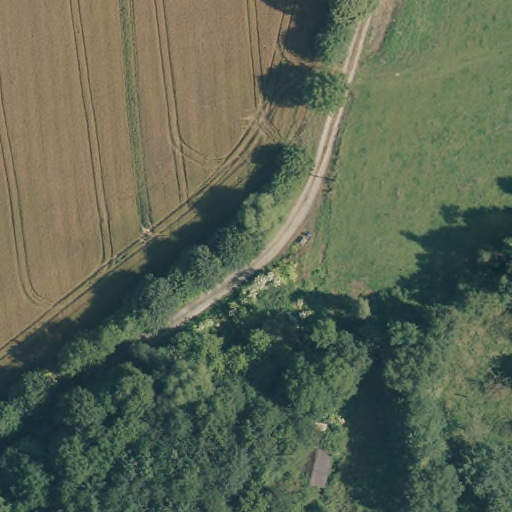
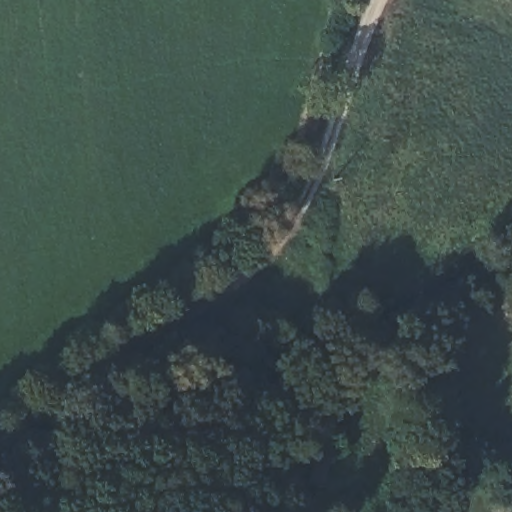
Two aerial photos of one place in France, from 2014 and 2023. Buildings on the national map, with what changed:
unchanged [(295,435),(322,439),(317,473),(290,469),(295,435)]

